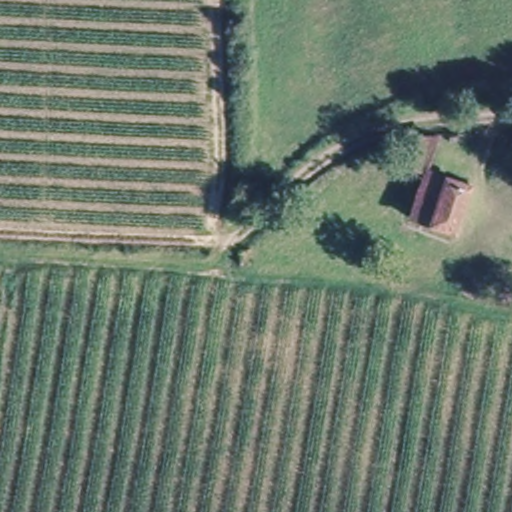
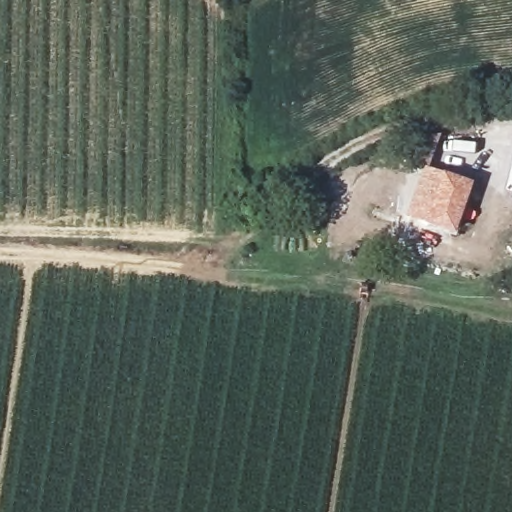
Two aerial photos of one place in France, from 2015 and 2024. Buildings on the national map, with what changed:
unchanged [(427,172),(413,167),(423,137),(442,137),(427,172)]
unchanged [(456,231),(412,219),(427,172),(471,185),(456,231)]

